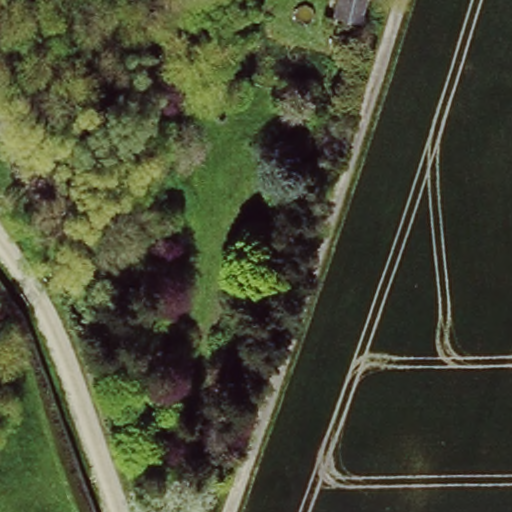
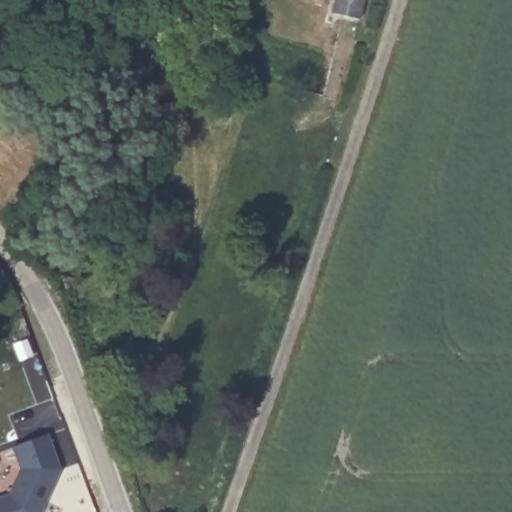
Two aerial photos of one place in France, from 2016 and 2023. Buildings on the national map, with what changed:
unchanged [(359,10),(331,2),(332,0),(362,0),(359,10)]
new [(20,472),(11,451),(44,439),(58,475),(43,512),(0,512),(0,502),(10,498),(20,472)]

